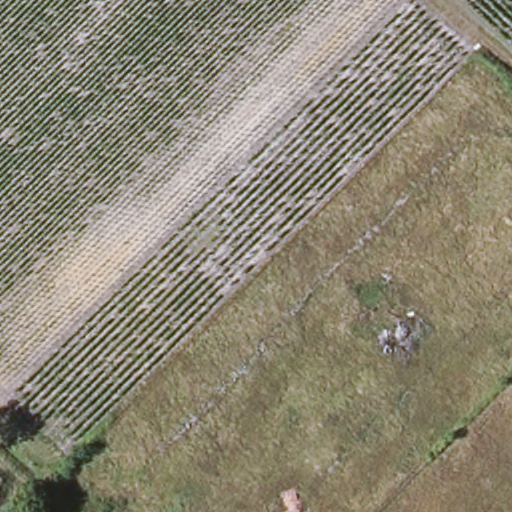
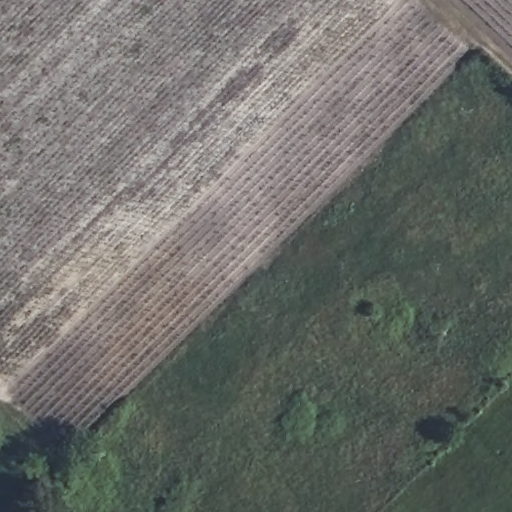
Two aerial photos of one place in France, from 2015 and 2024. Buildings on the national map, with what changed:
[]

